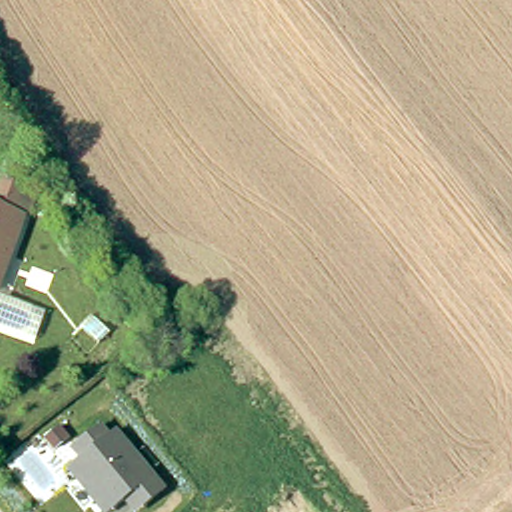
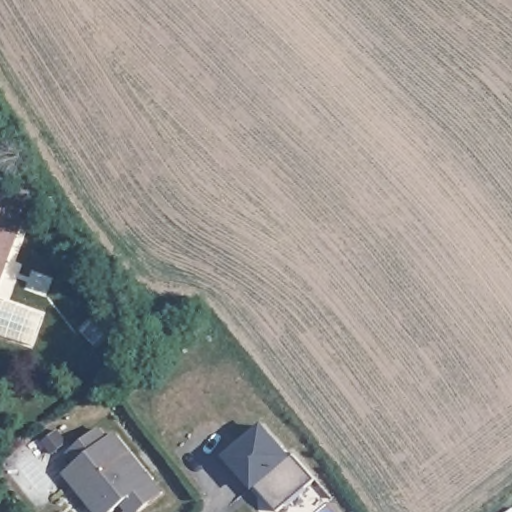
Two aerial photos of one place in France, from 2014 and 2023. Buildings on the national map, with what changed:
unchanged [(29,205),(0,270),(0,194),(0,192),(29,205)]
new [(262,422),(290,453),(293,451),(317,479),(278,511),(258,487),(255,490),(224,456),(262,422)]
unchanged [(122,505),(113,512),(96,512),(63,475),(75,465),(67,453),(99,427),(107,437),(115,431),(163,492),(141,512),(129,512),(122,505)]

